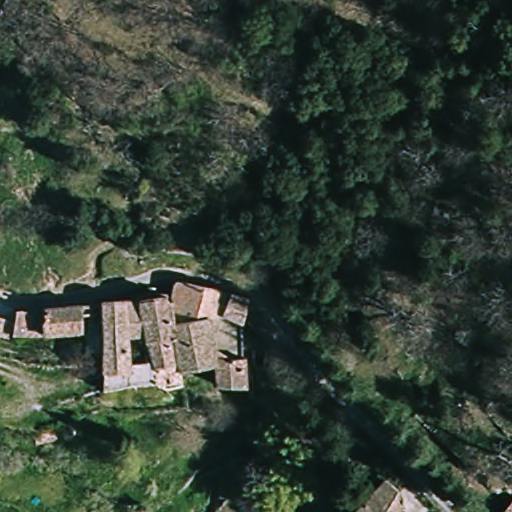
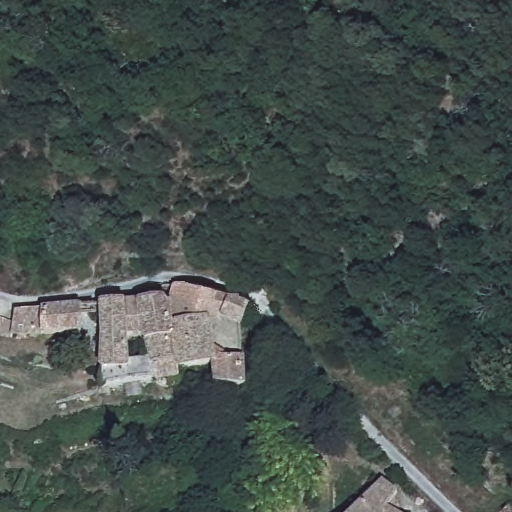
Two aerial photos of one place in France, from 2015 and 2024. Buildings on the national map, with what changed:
unchanged [(175,333),(171,302),(168,285),(179,283),(252,305),(256,308),(248,321),(248,324),(209,312),(215,354),(247,356),(248,388),(219,384),(218,368),(184,368),(175,361),(175,333)]
unchanged [(102,363),(104,300),(171,302),(175,333),(175,361),(160,362),(158,376),(102,381),(88,382),(88,364),(88,362),(102,363)]
unchanged [(18,311),(27,312),(85,311),(83,338),(14,334),(0,333),(0,320),(16,323),(18,311)]
unchanged [(246,340),(247,356),(215,354),(209,312),(248,324),(246,340)]
unchanged [(400,496),(386,508),(382,512),(354,512),(385,485),(400,496)]
unchanged [(512,512),(505,512),(512,506),(512,512)]
unchanged [(392,512),(382,512),(386,508),(392,512)]

